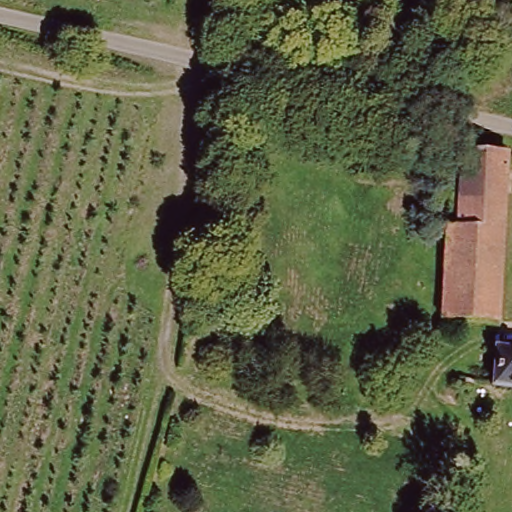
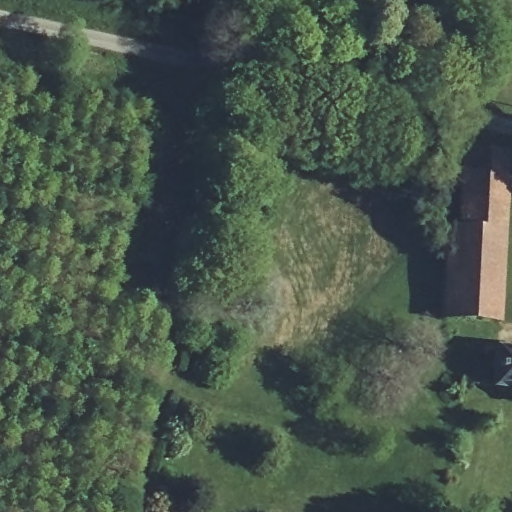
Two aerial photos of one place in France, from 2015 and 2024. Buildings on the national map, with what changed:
unchanged [(441,320),(444,229),(456,230),(459,154),(512,155),(512,176),(502,176),(494,321),(441,320)]
unchanged [(487,382),(487,376),(491,343),(512,346),(512,384),(487,382)]

